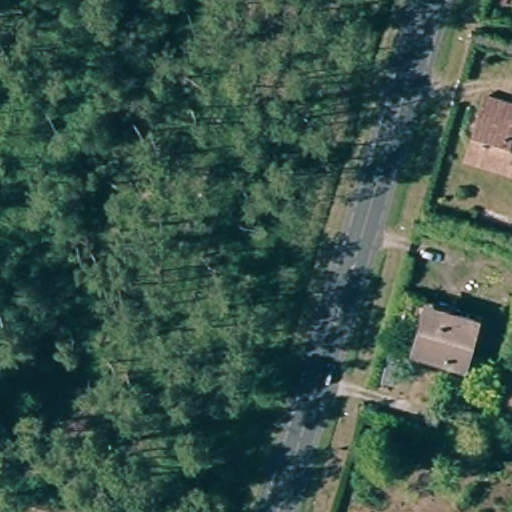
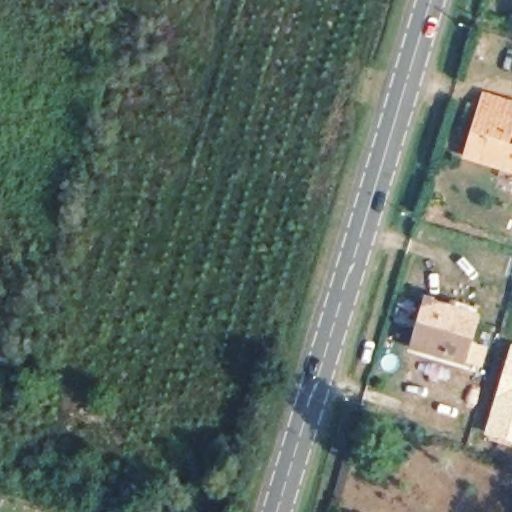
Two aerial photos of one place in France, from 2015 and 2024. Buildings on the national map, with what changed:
unchanged [(482,99),(512,108),(512,124),(504,150),(512,152),(512,175),(464,160),(482,99)]
unchanged [(427,307),(475,322),(463,363),(419,350),(414,349),(422,324),(427,307)]
new [(512,344),(512,445),(482,436),(510,344),(512,344)]

